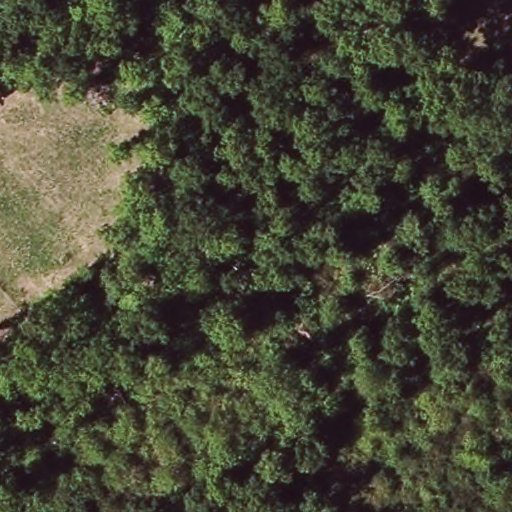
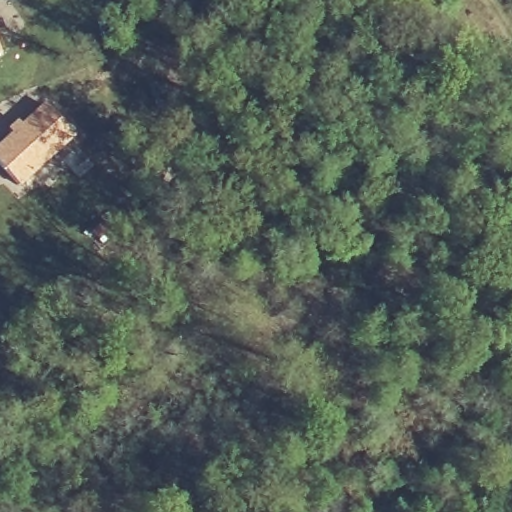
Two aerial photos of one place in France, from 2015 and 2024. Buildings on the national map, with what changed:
new [(0,56),(0,51),(1,56),(0,56)]
new [(20,189),(0,166),(0,144),(44,104),(75,136),(20,189)]

